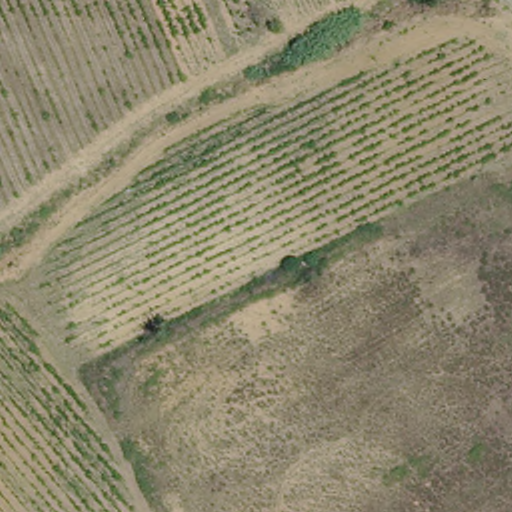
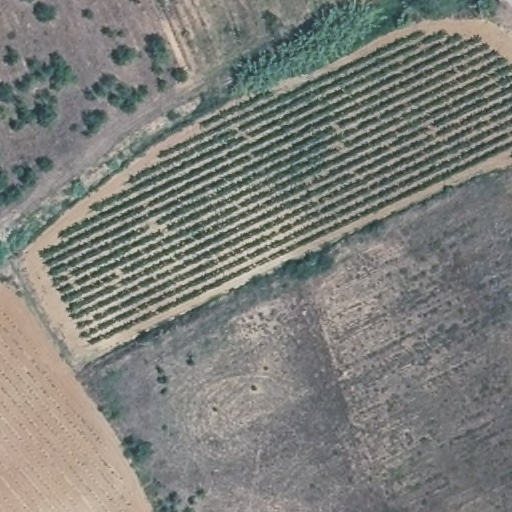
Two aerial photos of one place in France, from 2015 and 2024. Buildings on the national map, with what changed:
[]

